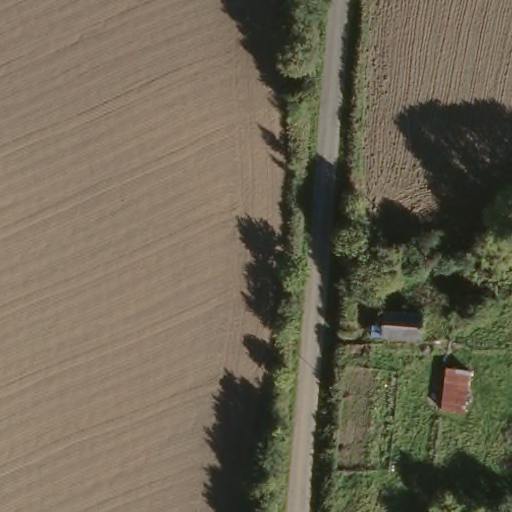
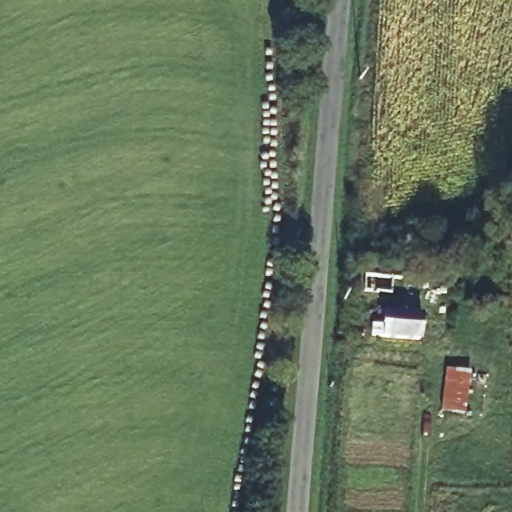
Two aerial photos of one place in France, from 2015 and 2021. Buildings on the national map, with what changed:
unchanged [(377,279),(378,296),(351,300),(348,283),(377,279)]
unchanged [(416,338),(379,337),(382,311),(416,313),(416,338)]
unchanged [(444,366),(474,368),(472,401),(464,401),(462,413),(439,413),(444,366)]

